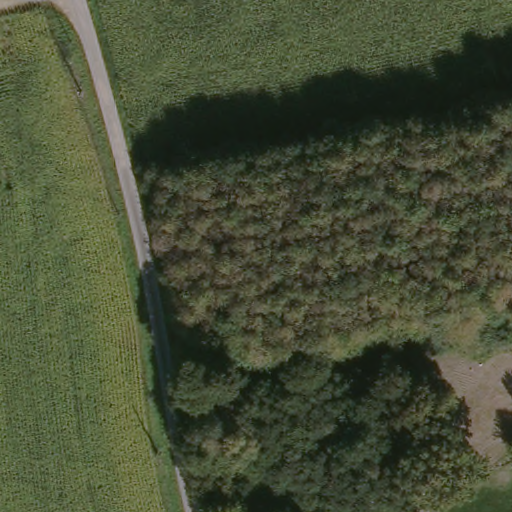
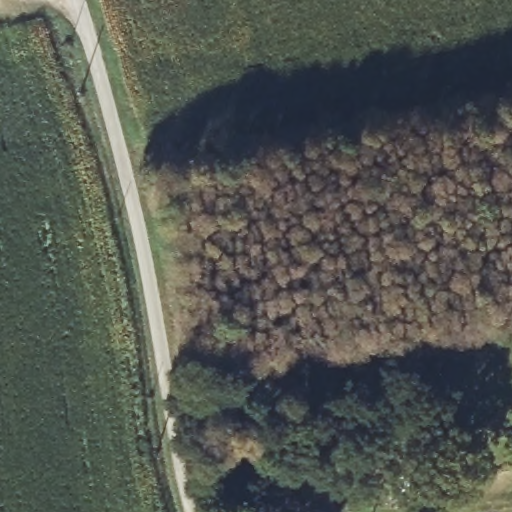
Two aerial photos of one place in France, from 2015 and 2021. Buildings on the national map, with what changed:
[]

